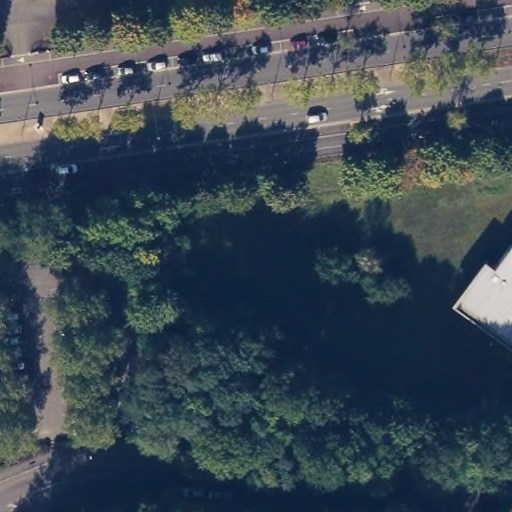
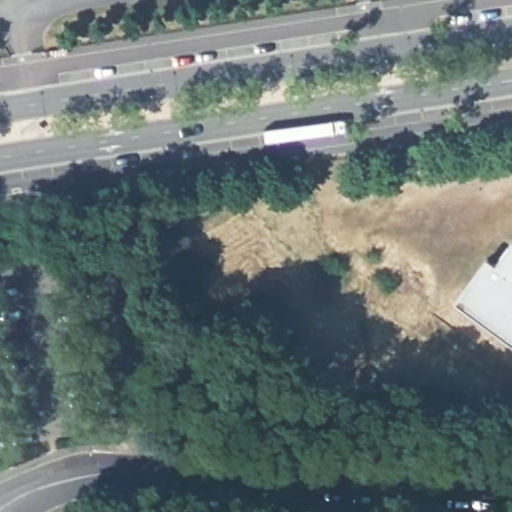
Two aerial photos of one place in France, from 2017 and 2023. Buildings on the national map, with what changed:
unchanged [(456,301),(487,259),(501,269),(512,255),(512,342),(456,301)]

